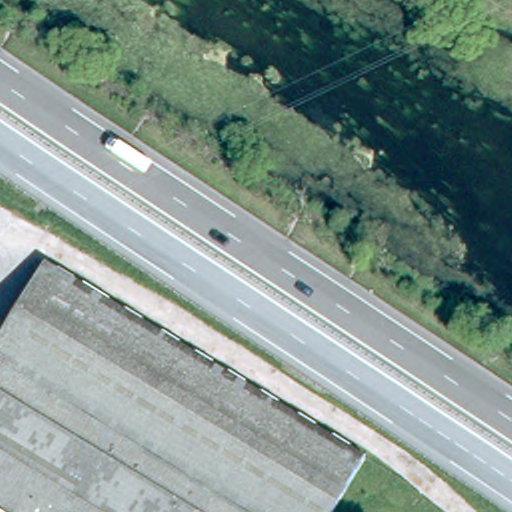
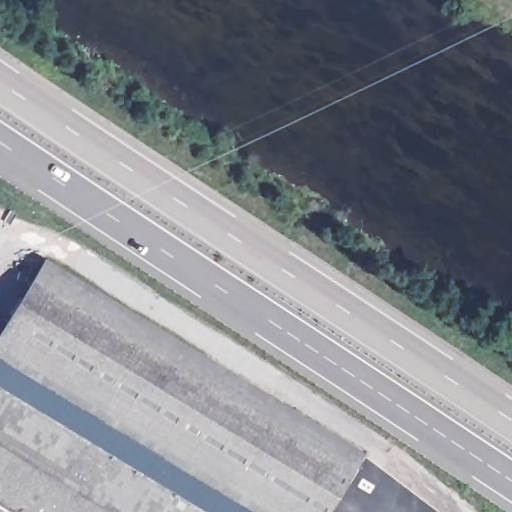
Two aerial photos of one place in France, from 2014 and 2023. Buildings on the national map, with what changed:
unchanged [(44,263),(123,311),(356,453),(363,458),(330,512),(248,512),(0,360),(0,335),(43,264),(44,263)]
unchanged [(0,360),(248,512),(198,512),(0,391),(0,360)]
unchanged [(0,391),(198,512),(0,512),(0,391)]

